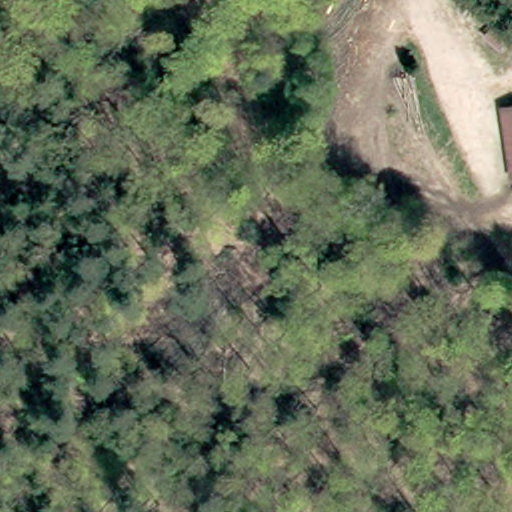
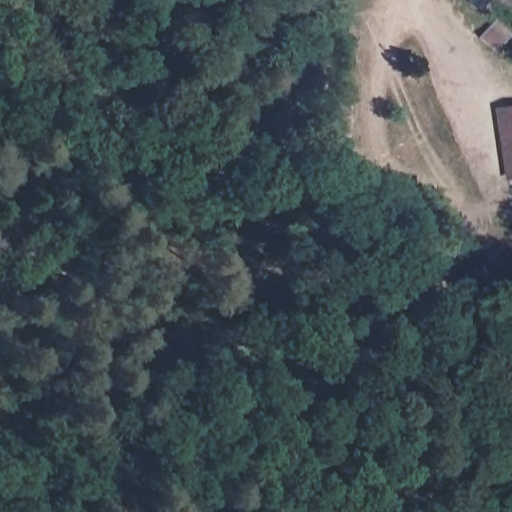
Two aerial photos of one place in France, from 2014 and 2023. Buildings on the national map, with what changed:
unchanged [(497,109),(512,107),(512,182),(503,184),(497,109)]

